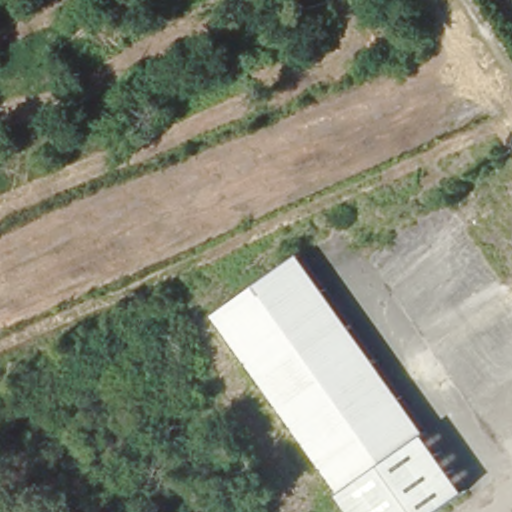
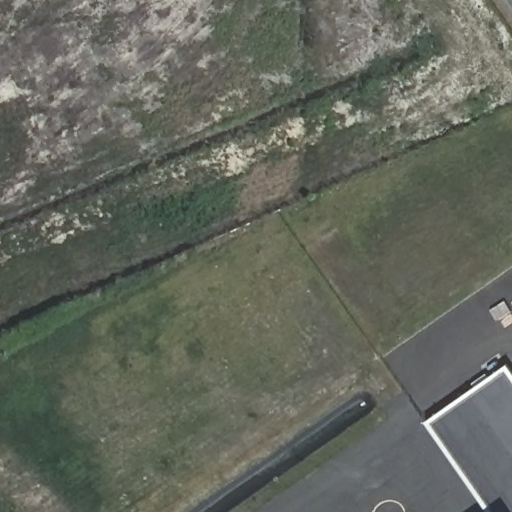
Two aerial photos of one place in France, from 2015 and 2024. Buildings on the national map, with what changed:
demolished [(302,256),(468,489),(436,512),(353,512),(215,318),(302,256)]
new [(428,423),(509,366),(512,370),(512,512),(490,512),(428,423)]

